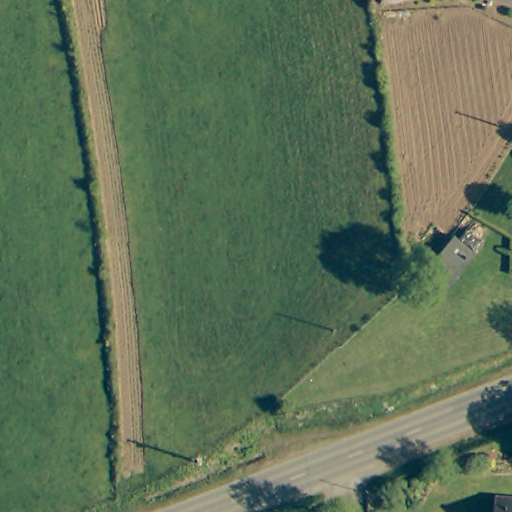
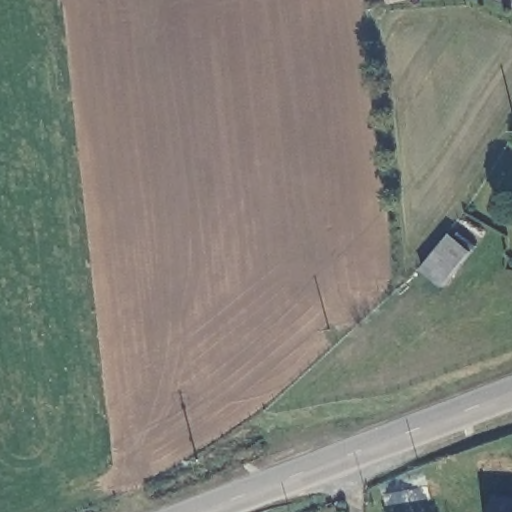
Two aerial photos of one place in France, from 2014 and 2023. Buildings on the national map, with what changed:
unchanged [(474,250),(448,286),(427,271),(455,236),(474,250)]
unchanged [(512,498),(512,512),(493,512),(493,496),(512,498)]

